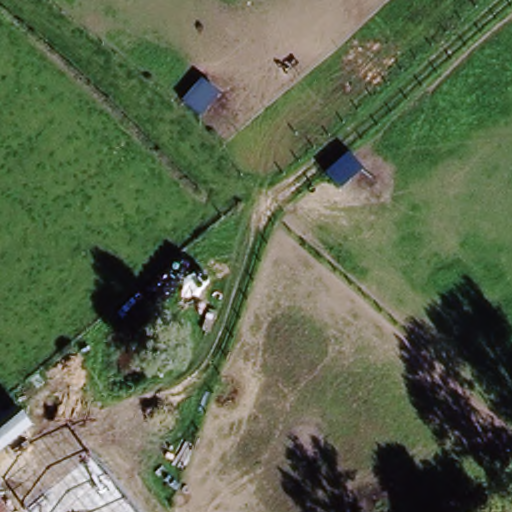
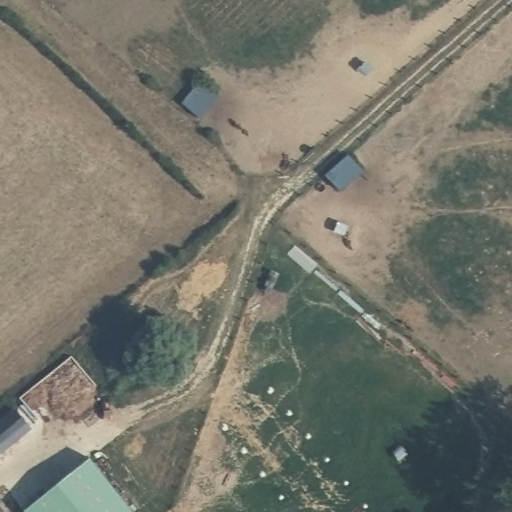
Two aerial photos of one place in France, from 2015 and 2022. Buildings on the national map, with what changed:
unchanged [(27,427),(0,450),(0,417),(12,408),(27,427)]
new [(134,512),(26,512),(25,511),(90,457),(134,512)]
new [(0,503),(7,512),(0,512),(0,503)]

